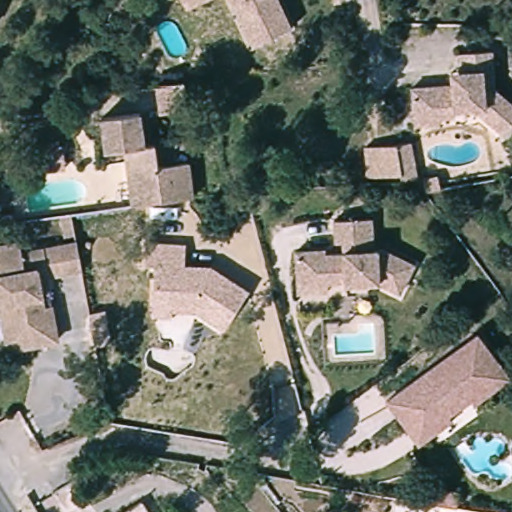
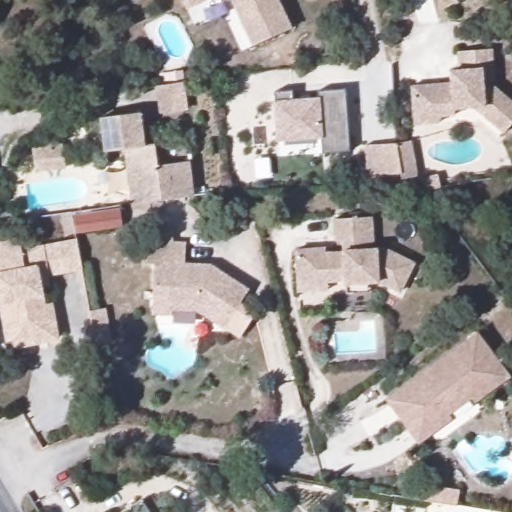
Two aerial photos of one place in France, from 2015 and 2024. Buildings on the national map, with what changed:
unchanged [(199,0),(185,6),(183,0),(199,0)]
unchanged [(250,46),(230,0),(278,0),(290,31),(250,46)]
unchanged [(420,125),(419,109),(418,87),(459,86),(458,73),(467,73),(466,54),(500,53),(501,91),(512,101),(512,133),(508,137),(478,110),(460,111),(460,117),(443,118),(444,124),(420,125)]
new [(188,110),(160,115),(155,85),(183,81),(188,110)]
new [(347,88),(350,151),(323,154),(321,138),(316,138),(316,141),(285,144),(285,139),(278,139),(275,101),(277,101),(276,92),(292,91),(292,99),(320,97),(319,91),(347,88)]
unchanged [(133,201),(128,148),(107,149),(105,120),(143,116),(146,143),(160,143),(162,161),(193,158),(197,194),(133,201)]
unchanged [(365,146),(395,143),(410,141),(413,174),(398,175),(368,179),(365,146)]
new [(63,146),(66,166),(36,170),(33,151),(63,146)]
unchanged [(420,171),(435,169),(437,180),(422,182),(420,171)]
unchanged [(352,290),(352,280),(351,277),(332,278),(333,287),(305,289),(303,276),(301,248),(330,246),(331,250),(350,249),(350,247),(357,247),(356,237),(341,238),(339,216),(376,213),(379,245),(390,244),(420,259),(405,288),(385,277),(373,278),(374,288),(352,290)]
unchanged [(79,237),(67,238),(65,215),(74,214),(79,237)]
unchanged [(42,291),(45,306),(52,306),(57,342),(8,349),(2,304),(0,304),(0,244),(20,241),(22,252),(80,244),(84,270),(47,277),(49,290),(42,291)]
unchanged [(185,242),(185,264),(210,265),(250,290),(223,330),(195,312),(172,311),(172,317),(152,315),(155,265),(145,266),(146,241),(185,242)]
unchanged [(111,337),(104,346),(95,346),(89,312),(105,309),(111,337)]
unchanged [(412,430),(389,400),(480,332),(504,363),(512,374),(512,376),(480,402),(475,397),(452,414),(455,419),(435,434),(422,443),(412,430)]
unchanged [(437,510),(433,510),(437,494),(468,501),(466,512),(446,512),(437,510)]
unchanged [(151,512),(129,512),(145,503),(151,512)]

